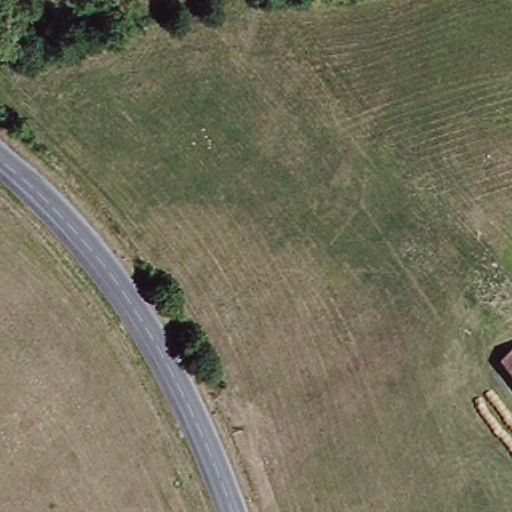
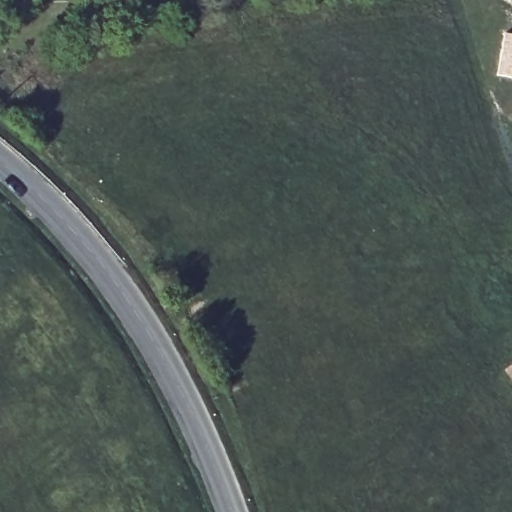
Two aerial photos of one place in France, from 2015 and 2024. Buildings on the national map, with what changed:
new [(512,36),(512,78),(494,75),(501,34),(512,36)]
unchanged [(512,365),(512,381),(505,370),(512,365)]

